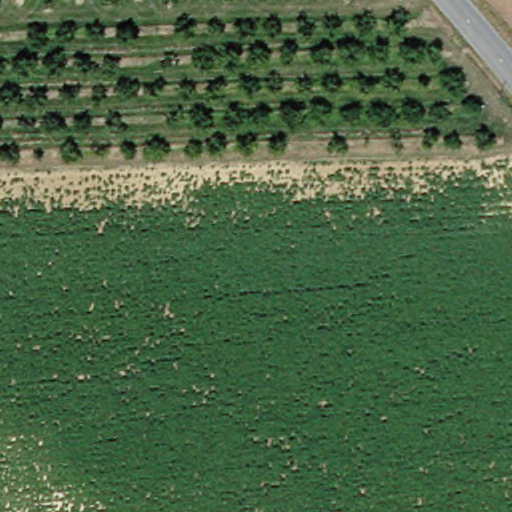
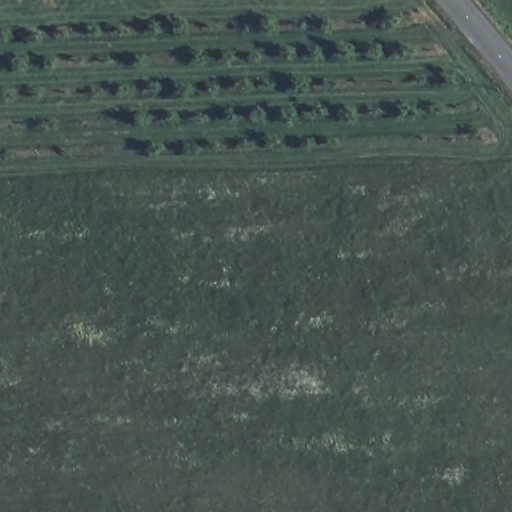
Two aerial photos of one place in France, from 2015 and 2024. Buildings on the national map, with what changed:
[]

